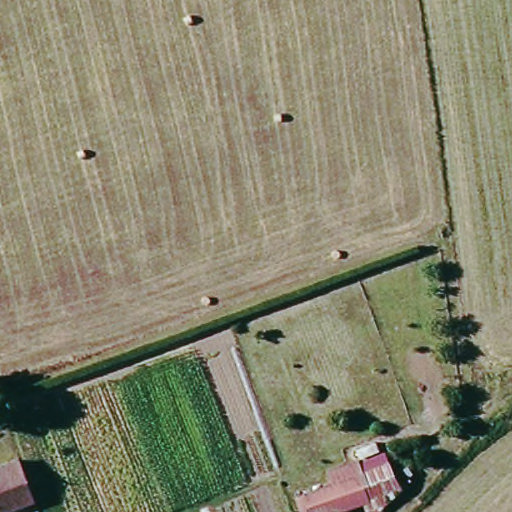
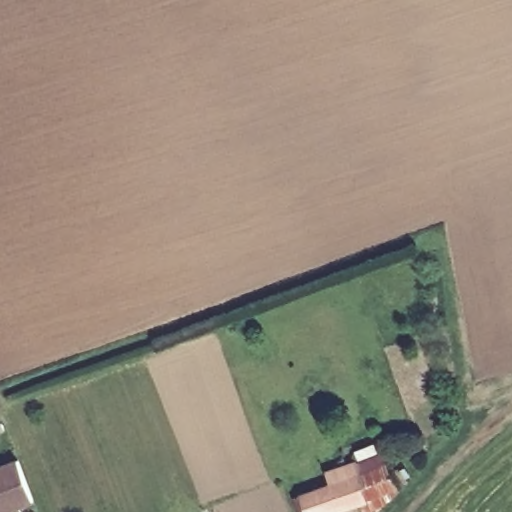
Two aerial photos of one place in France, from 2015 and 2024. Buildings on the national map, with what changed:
unchanged [(395,448),(407,489),(377,512),(373,512),(368,498),(362,500),(353,477),(340,482),(336,471),(395,448)]
unchanged [(0,474),(29,463),(43,499),(40,501),(12,512),(0,512),(0,474)]
unchanged [(362,500),(330,512),(305,512),(300,497),(340,482),(353,477),(362,500)]

